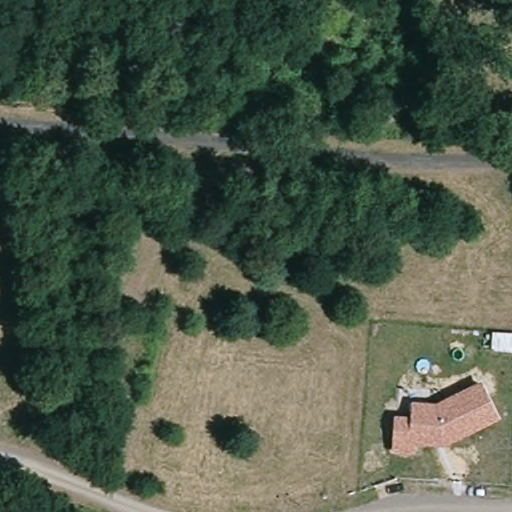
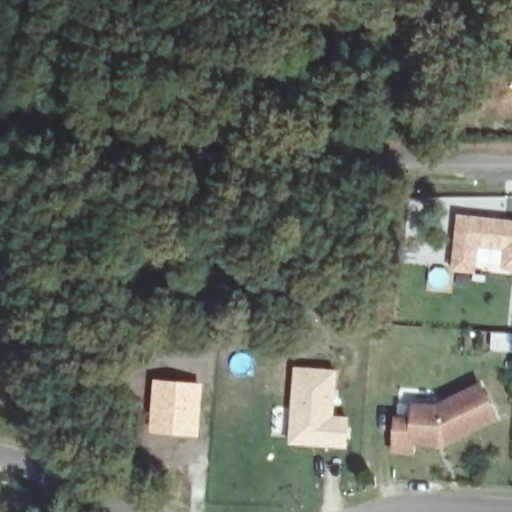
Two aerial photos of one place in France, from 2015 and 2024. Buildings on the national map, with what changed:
new [(503,250),(479,246),(476,272),(451,268),(459,215),(512,220),(512,270),(501,268),(503,250)]
new [(293,365),(337,368),(334,414),(349,415),(347,447),(288,443),(293,365)]
new [(153,377),(203,382),(198,436),(148,432),(153,377)]
unchanged [(481,381),(497,416),(499,421),(446,446),(415,445),(414,455),(392,453),(394,414),(410,415),(411,400),(437,402),(481,381)]

